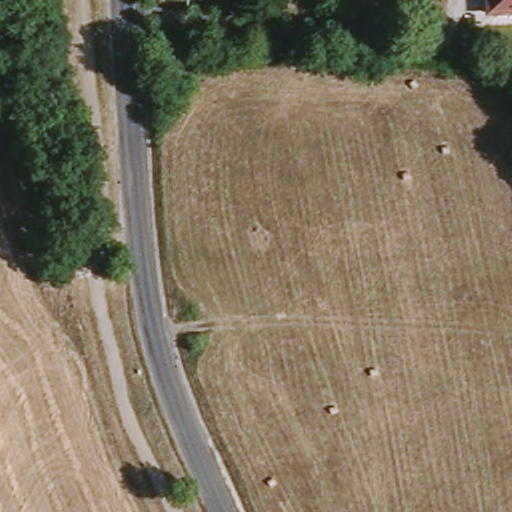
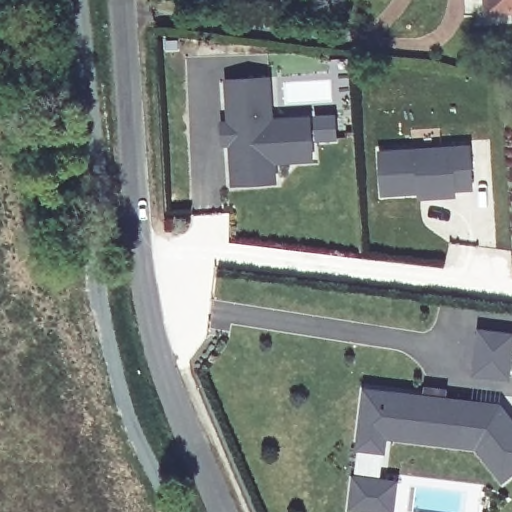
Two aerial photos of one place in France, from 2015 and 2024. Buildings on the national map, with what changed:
unchanged [(512,0),(512,17),(494,18),(487,19),(486,0),(512,0)]
new [(232,187),(229,147),(222,147),(221,121),(227,121),(225,80),(272,77),(274,117),(312,115),(313,162),(277,164),(278,186),(232,187)]
new [(384,194),(381,151),(471,146),(473,189),(455,190),(456,196),(436,197),(421,198),(421,192),(384,194)]
new [(512,351),(510,376),(476,372),(481,329),(512,332),(512,351)]
new [(428,386),(445,388),(445,397),(502,402),(512,416),(512,471),(503,478),(477,443),(386,432),(384,447),(358,445),(365,387),(427,393),(428,386)]
new [(397,481),(393,510),(352,506),(355,474),(397,481)]

